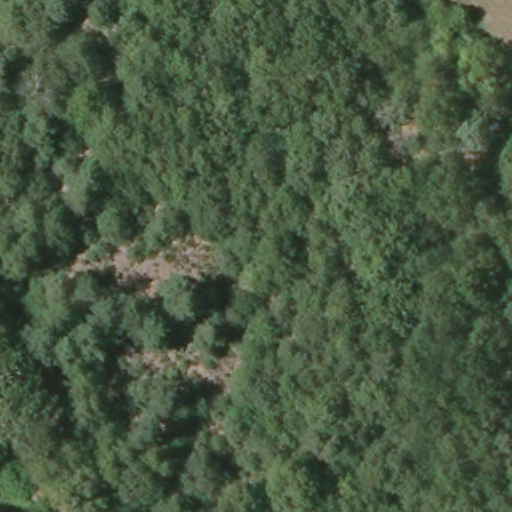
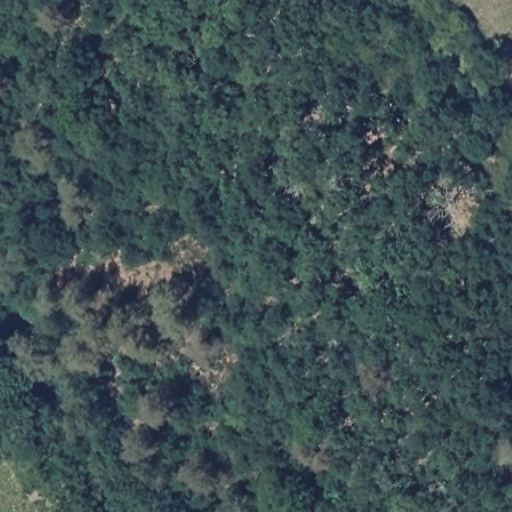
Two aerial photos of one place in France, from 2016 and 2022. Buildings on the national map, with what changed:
[]

